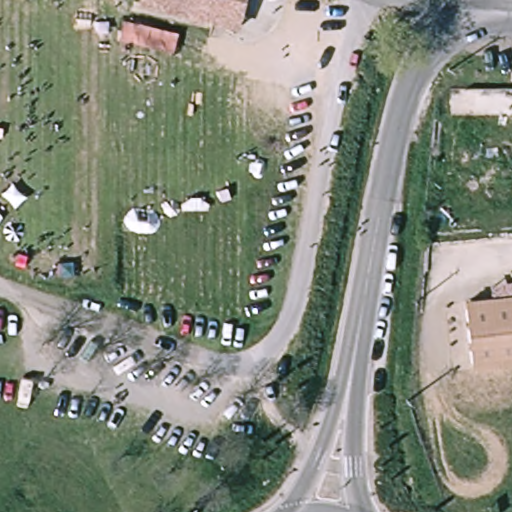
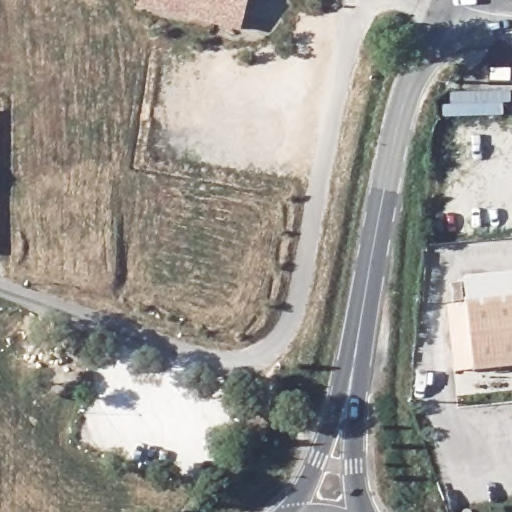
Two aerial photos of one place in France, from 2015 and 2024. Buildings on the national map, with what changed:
unchanged [(242,31),(140,8),(142,0),(247,0),(242,31)]
new [(448,90),(509,90),(509,115),(448,116),(448,90)]
unchanged [(491,285),(512,283),(512,299),(493,301),(491,285)]
unchanged [(468,304),(512,299),(512,365),(476,369),(468,304)]

